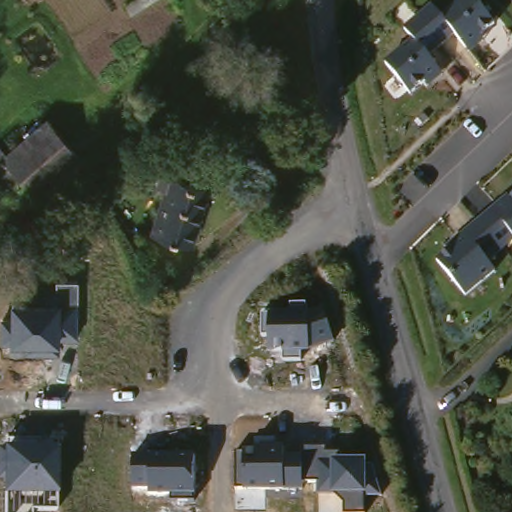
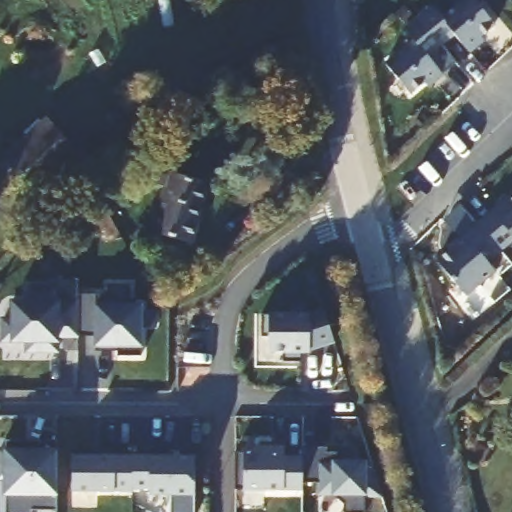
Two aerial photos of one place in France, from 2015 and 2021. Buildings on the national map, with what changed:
unchanged [(409,43),(399,32),(413,20),(427,9),(437,20),(462,0),(467,0),(490,27),(460,52),(448,38),(436,48),(423,59),(434,73),(405,97),(381,67),(409,43)]
unchanged [(52,201),(41,189),(35,182),(22,195),(0,168),(0,145),(7,138),(16,146),(55,111),(89,148),(99,158),(52,201)]
unchanged [(179,170),(219,183),(201,240),(158,230),(179,170)]
unchanged [(451,249),(475,227),(498,204),(501,206),(512,196),(512,258),(506,264),(467,300),(436,268),(453,252),(451,249)]
unchanged [(23,352),(23,342),(1,343),(1,317),(10,319),(10,299),(57,300),(56,280),(77,279),(77,300),(78,338),(58,339),(58,341),(59,353),(23,352)]
new [(108,295),(108,286),(129,286),(131,304),(141,305),(141,347),(139,347),(139,355),(116,355),(116,349),(94,350),(94,346),(94,335),(78,335),(77,300),(77,295),(108,295)]
unchanged [(289,318),(288,308),(304,307),(311,317),(325,313),(335,345),(303,355),(304,365),(285,367),(284,357),(270,357),(269,343),(262,343),(260,320),(289,318)]
unchanged [(31,510),(31,512),(3,512),(2,493),(2,479),(0,479),(0,449),(2,449),(2,447),(6,447),(6,440),(56,441),(57,449),(57,495),(57,510),(31,510)]
new [(133,489),(131,492),(112,491),(72,491),(72,455),(86,455),(85,447),(114,447),(114,457),(132,457),(133,489)]
unchanged [(243,452),(243,449),(252,450),(252,448),(283,449),(283,455),(303,455),(303,448),(326,448),(325,453),(351,453),(352,459),(367,459),(367,467),(372,467),(381,498),(362,497),(363,512),(343,512),(343,503),(334,495),(317,495),(317,481),(302,482),(302,489),(234,489),(235,451),(243,452)]
unchanged [(132,457),(194,458),(194,500),(171,500),(171,495),(149,494),(149,488),(133,489),(132,457)]

